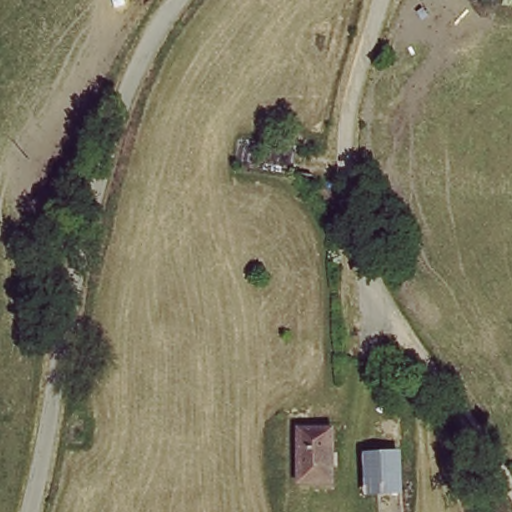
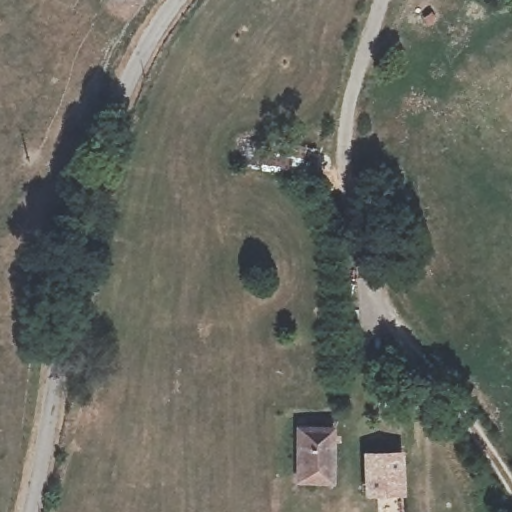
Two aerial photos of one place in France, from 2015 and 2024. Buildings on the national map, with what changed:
unchanged [(334,431),(332,479),(299,482),(299,430),(334,431)]
unchanged [(399,470),(400,503),(363,504),(365,444),(402,443),(402,470),(399,470)]

